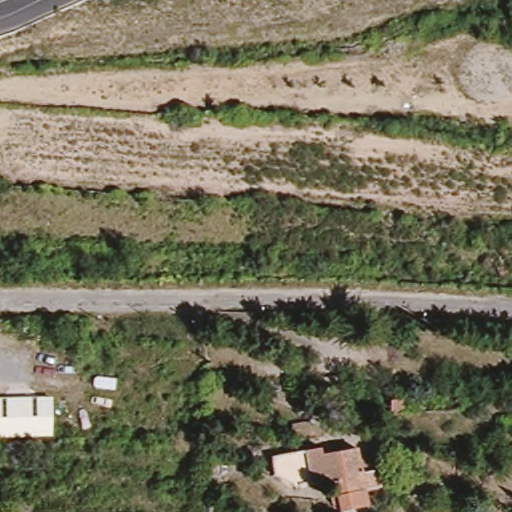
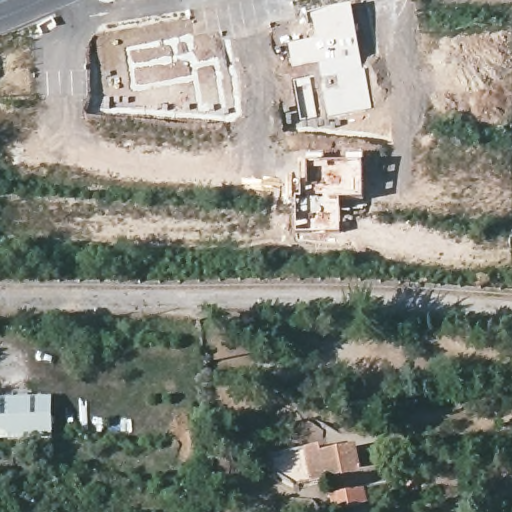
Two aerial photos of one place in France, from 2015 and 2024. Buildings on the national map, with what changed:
new [(317,40),(312,15),(351,6),(363,71),(365,71),(372,108),(328,115),(318,63),(294,68),(288,45),(317,40)]
new [(191,37),(198,65),(217,62),(226,108),(201,112),(195,80),(135,92),(127,49),(191,37)]
new [(300,155),(363,154),(363,200),(351,201),(351,203),(341,203),(340,231),(295,234),(295,212),(300,155)]
unchanged [(341,401),(317,402),(317,378),(341,377),(341,401)]
unchanged [(51,394),(52,438),(0,439),(0,396),(51,394)]
unchanged [(401,412),(391,412),(391,400),(401,400),(401,412)]
unchanged [(320,461),(355,454),(357,465),(380,462),(386,491),(365,495),(367,510),(354,512),(341,512),(340,510),(335,511),(332,498),(337,498),(335,483),(297,490),(278,479),(275,463),(318,454),(320,461)]

